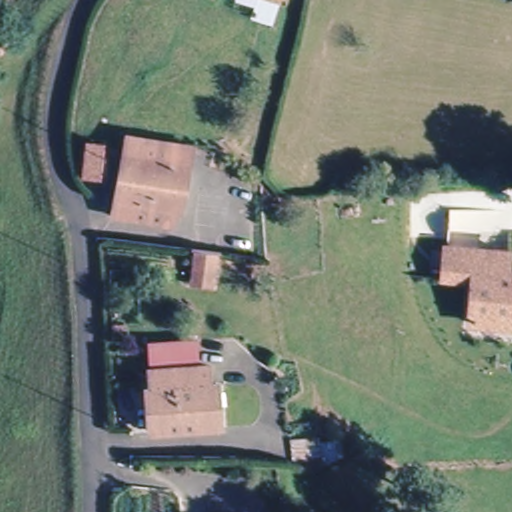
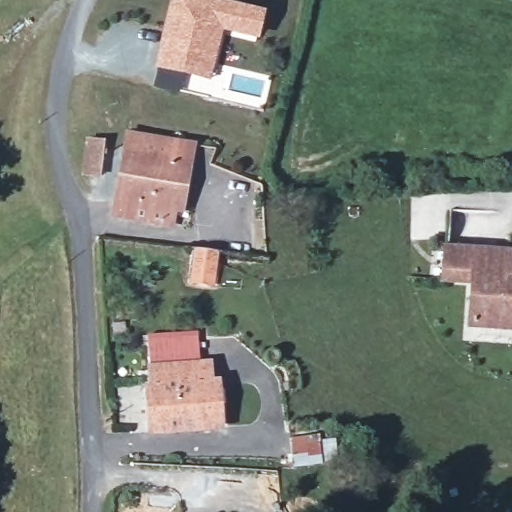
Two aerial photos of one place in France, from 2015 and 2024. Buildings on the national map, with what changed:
new [(264,13),(258,40),(223,31),(212,82),(155,68),(170,0),(211,0),(264,13)]
demolished [(279,5),(253,0),(280,0),(279,5)]
unchanged [(170,209),(168,226),(122,218),(129,158),(131,142),(190,152),(188,167),(183,210),(170,209)]
unchanged [(219,286),(192,282),(196,248),(224,253),(219,286)]
unchanged [(507,277),(512,277),(512,329),(475,328),(476,285),(446,284),(446,254),(507,256),(507,277)]
unchanged [(151,366),(156,366),(157,343),(187,346),(186,370),(211,372),(208,417),(219,419),(217,438),(201,437),(146,433),(151,366)]

